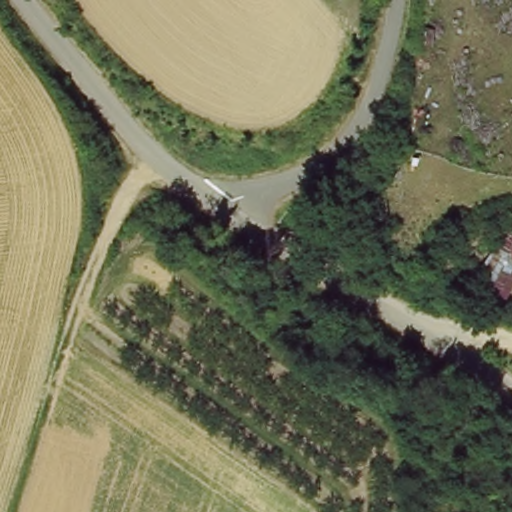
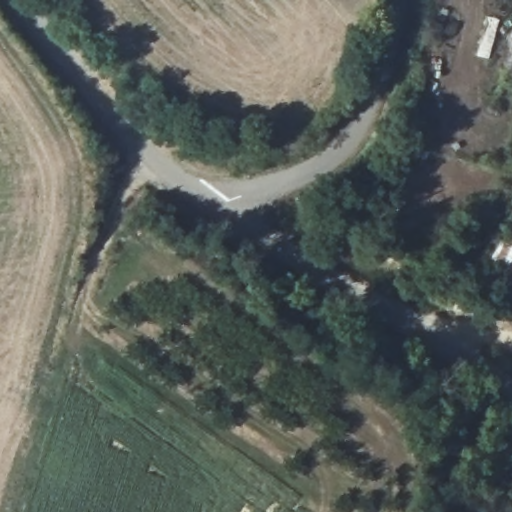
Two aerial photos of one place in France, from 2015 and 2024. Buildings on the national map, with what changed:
unchanged [(512,227),(512,294),(479,276),(509,225),(512,227)]

